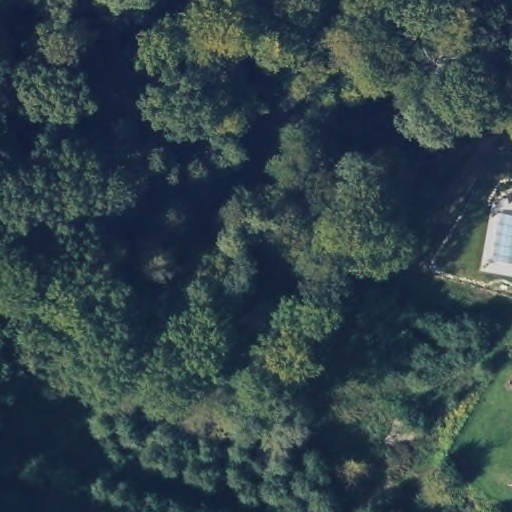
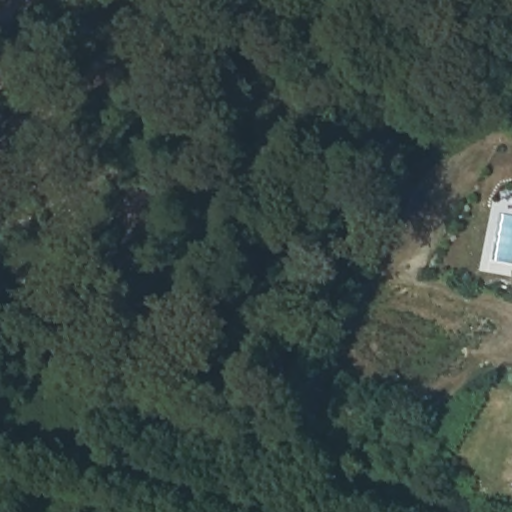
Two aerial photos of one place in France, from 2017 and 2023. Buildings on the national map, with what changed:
[]

